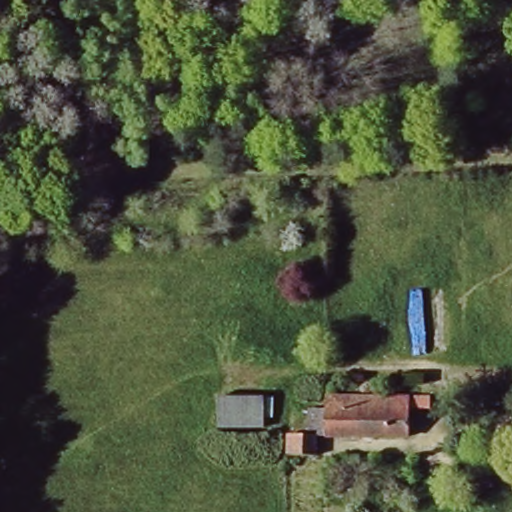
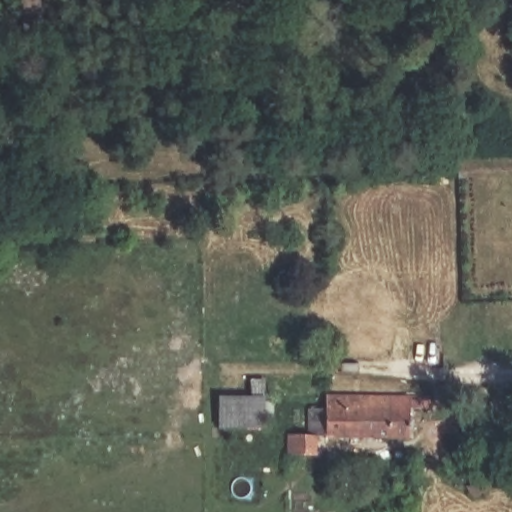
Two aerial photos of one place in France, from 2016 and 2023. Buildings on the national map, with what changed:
unchanged [(302,453),(302,433),(329,433),(329,402),(344,402),(344,395),(443,395),(443,412),(426,412),(426,433),(337,433),(337,453),(302,453)]
unchanged [(219,397),(261,396),(262,430),(216,430),(219,397)]

